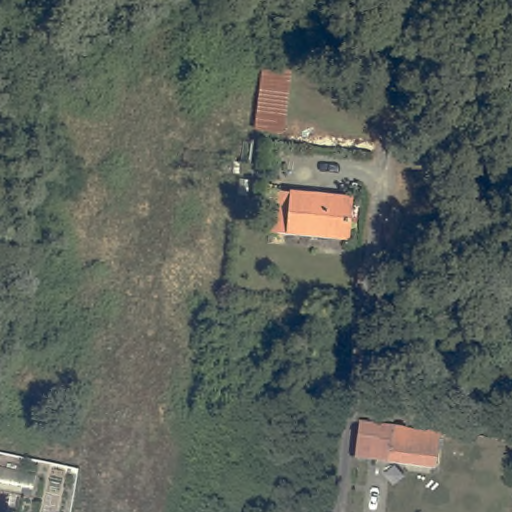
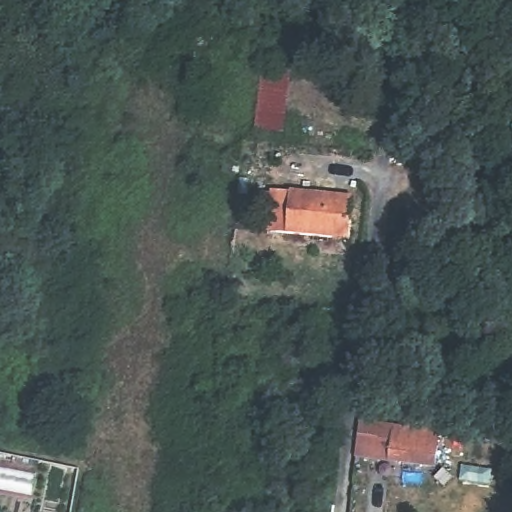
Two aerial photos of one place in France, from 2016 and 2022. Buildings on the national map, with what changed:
unchanged [(194,64),(197,38),(214,39),(210,66),(194,64)]
unchanged [(263,66),(290,70),(283,133),(255,129),(263,66)]
unchanged [(358,198),(355,239),(273,233),(275,208),(260,206),(261,193),(276,194),(277,191),(358,198)]
unchanged [(440,433),(435,469),(356,456),(360,419),(440,433)]

